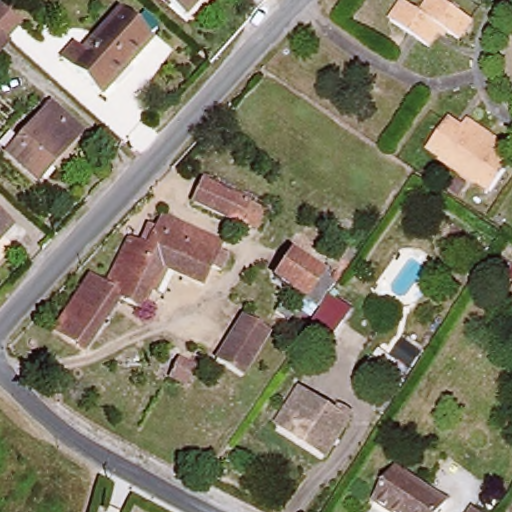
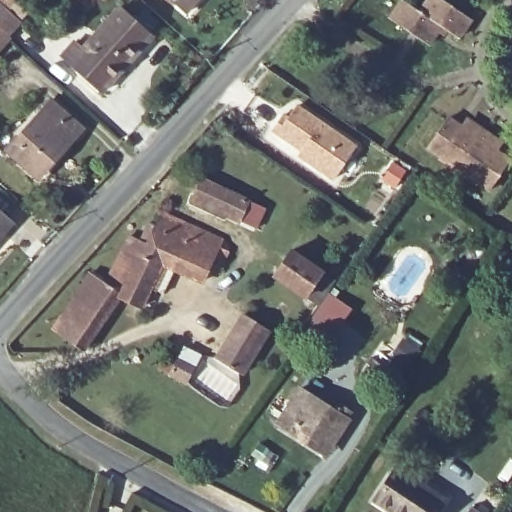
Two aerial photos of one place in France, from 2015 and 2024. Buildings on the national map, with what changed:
unchanged [(188,16),(170,0),(202,0),(188,16)]
unchanged [(471,21),(458,41),(441,30),(426,49),(388,25),(403,6),(418,16),(429,0),(438,0),(471,21)]
unchanged [(19,22),(4,38),(6,40),(0,47),(0,5),(19,22)]
unchanged [(72,40),(83,48),(121,6),(154,35),(102,92),(60,55),(72,40)]
unchanged [(49,102),(79,129),(33,181),(1,152),(49,102)]
new [(276,127),(286,112),(291,116),(299,104),(359,144),(338,176),(311,157),(302,152),(306,147),(276,127)]
unchanged [(423,151),(447,118),(463,128),(468,121),(496,139),(491,149),(508,161),(487,191),(423,151)]
unchanged [(256,232),(194,202),(204,182),(265,212),(256,232)]
unchanged [(0,238),(0,213),(12,224),(0,238)]
unchanged [(204,287),(165,266),(144,311),(122,298),(91,353),(61,336),(94,275),(111,283),(132,239),(150,247),(167,213),(223,245),(204,287)]
unchanged [(305,297),(273,276),(290,252),(321,273),(305,297)]
unchanged [(373,317),(357,343),(337,330),(352,305),(373,317)]
unchanged [(212,361),(240,317),(267,335),(241,378),(212,361)]
unchanged [(423,350),(392,392),(360,372),(378,345),(392,356),(406,337),(423,350)]
unchanged [(179,353),(198,366),(186,386),(165,376),(179,353)]
unchanged [(324,457),(273,425),(295,389),(346,420),(324,457)]
unchanged [(376,512),(369,508),(388,476),(438,506),(434,512),(376,512)]
unchanged [(482,512),(468,512),(472,506),(482,512)]

